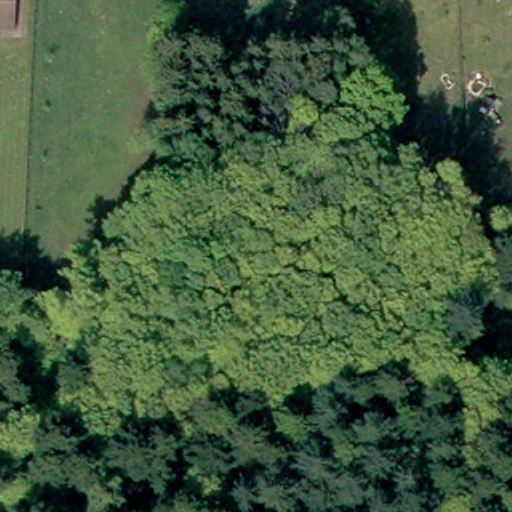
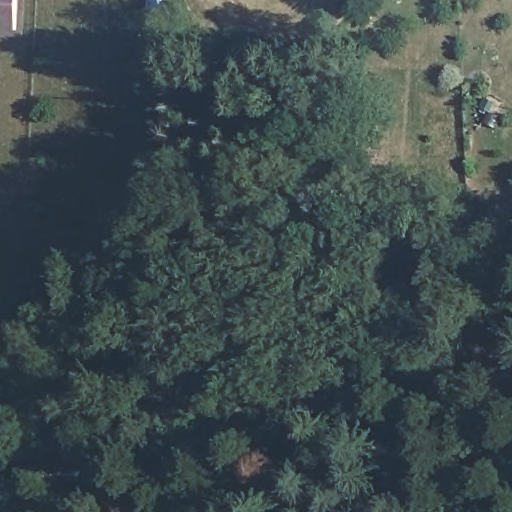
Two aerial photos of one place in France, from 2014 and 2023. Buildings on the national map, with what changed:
unchanged [(0,24),(0,0),(16,0),(15,25),(0,24)]

